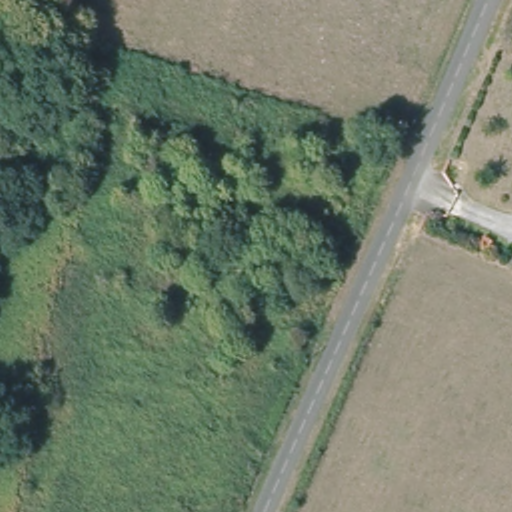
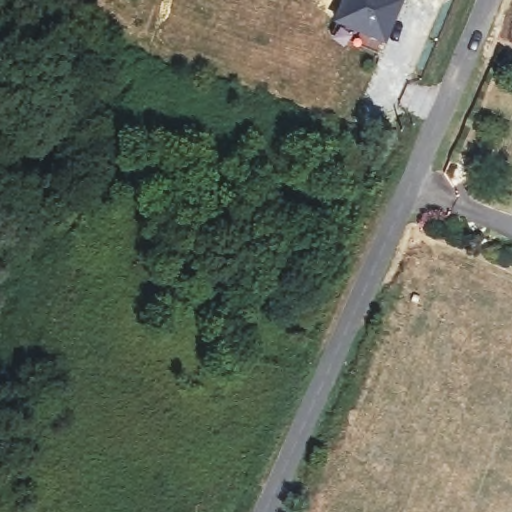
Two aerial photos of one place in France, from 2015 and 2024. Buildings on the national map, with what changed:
new [(403,0),(404,0),(385,46),(335,24),(344,0),(403,0)]

